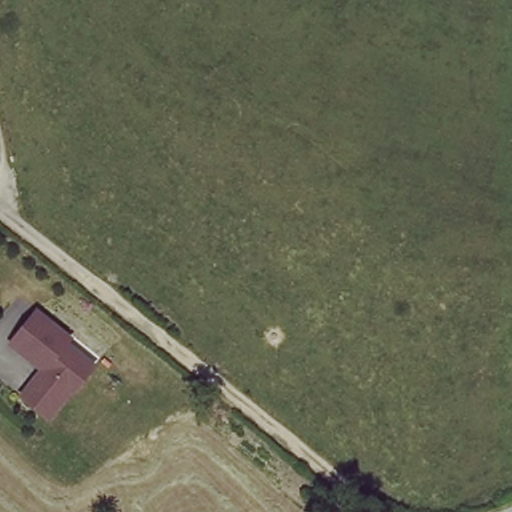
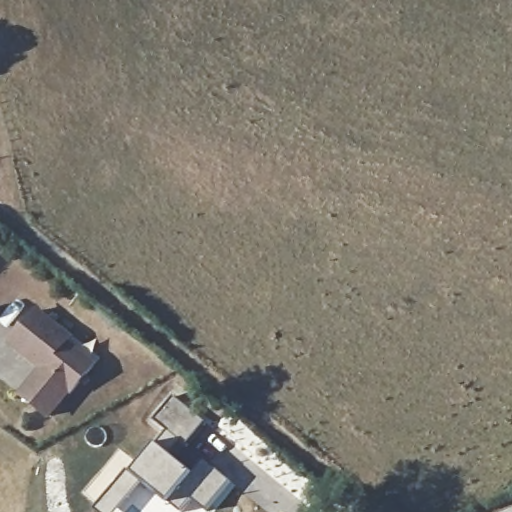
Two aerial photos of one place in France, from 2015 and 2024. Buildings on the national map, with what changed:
unchanged [(75,395),(73,393),(52,418),(25,398),(47,371),(15,344),(41,311),(74,338),(71,344),(98,367),(75,395)]
new [(126,471),(132,474),(157,445),(168,432),(154,421),(174,397),(204,422),(185,444),(182,442),(169,454),(192,474),(204,462),(228,482),(206,511),(192,499),(180,512),(169,504),(142,482),(117,512),(97,512),(95,510),(126,471)]

